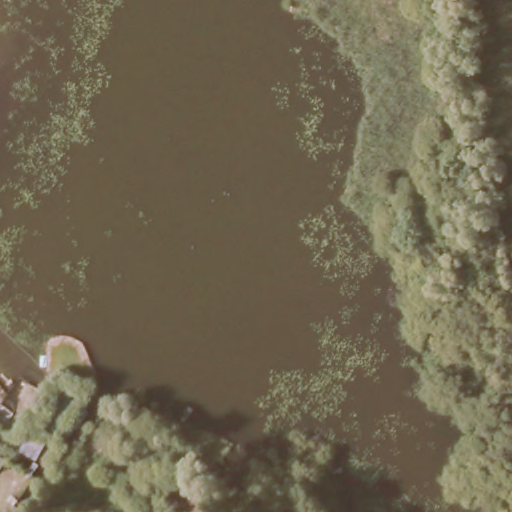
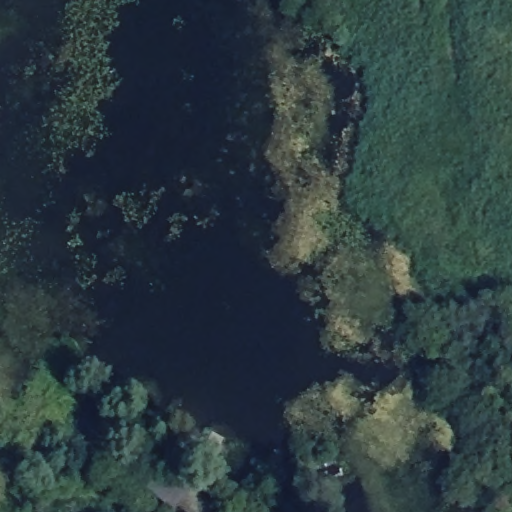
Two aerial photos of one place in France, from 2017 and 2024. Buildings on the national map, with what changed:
unchanged [(28,431),(43,439),(33,459),(41,461),(33,476),(15,470),(7,481),(0,478),(0,454),(10,458),(28,431)]

